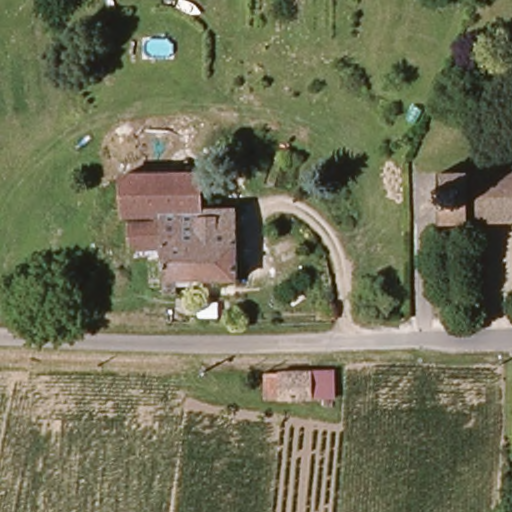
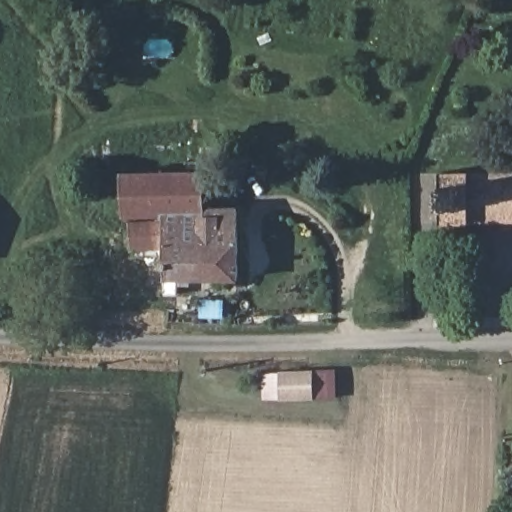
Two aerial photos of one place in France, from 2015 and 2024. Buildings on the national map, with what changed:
unchanged [(135,223),(167,224),(167,218),(127,217),(126,173),(209,174),(210,210),(242,212),(241,284),(183,283),(183,295),(167,296),(167,252),(134,250),(135,223)]
unchanged [(447,175),(512,174),(512,224),(446,225),(447,175)]
unchanged [(129,258),(117,258),(116,226),(127,227),(129,258)]
unchanged [(293,372),(330,373),(335,373),(335,400),(290,399),(267,400),(265,372),(293,372)]

